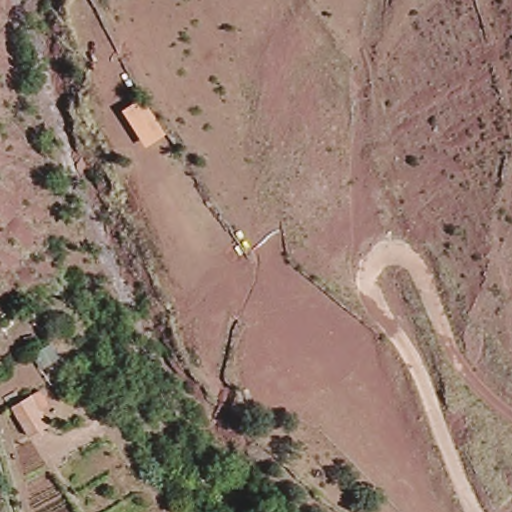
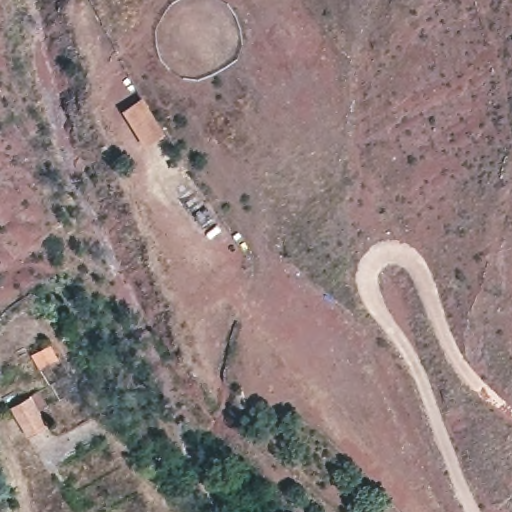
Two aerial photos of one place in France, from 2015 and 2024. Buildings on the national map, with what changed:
unchanged [(123,111),(143,99),(166,134),(146,146),(123,111)]
unchanged [(31,400),(48,427),(28,439),(11,412),(31,400)]

